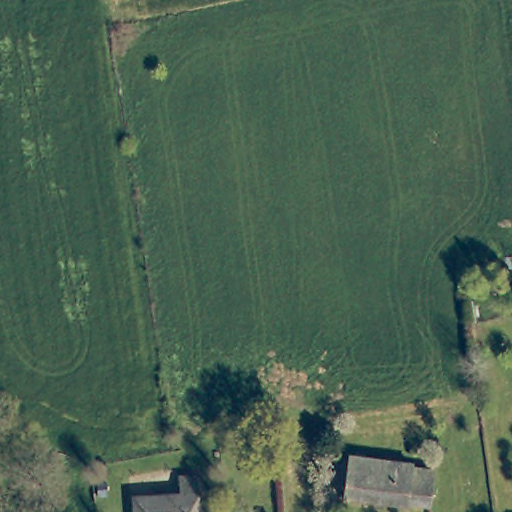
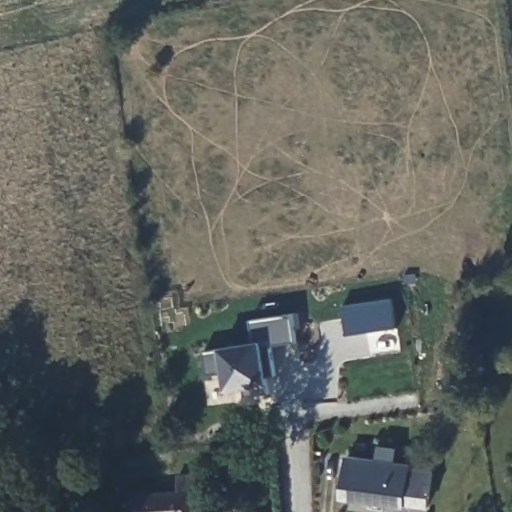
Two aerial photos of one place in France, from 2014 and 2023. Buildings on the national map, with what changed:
new [(346,337),(342,305),(395,297),(399,329),(346,337)]
new [(271,345),(275,381),(271,383),(273,390),(244,395),(243,390),(228,392),(225,372),(208,375),(204,351),(223,347),(254,342),(250,321),(291,315),(295,341),(271,345)]
unchanged [(413,467),(412,470),(434,474),(428,508),(409,504),(408,510),(347,499),(356,456),(413,467)]
unchanged [(133,498),(177,493),(176,477),(195,476),(198,512),(134,512),(133,498)]

